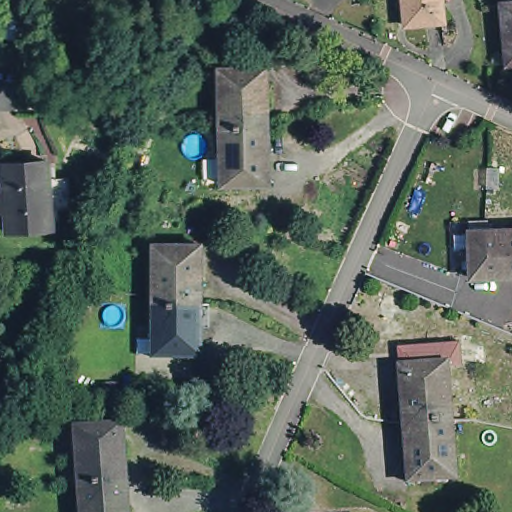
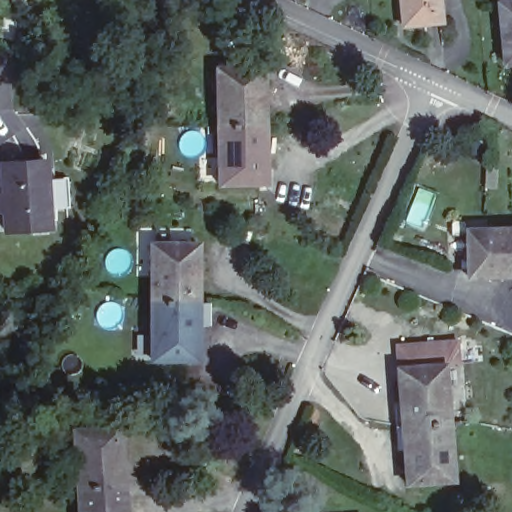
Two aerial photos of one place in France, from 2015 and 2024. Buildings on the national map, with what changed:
unchanged [(402,20),(400,0),(440,0),(443,23),(423,25),(422,19),(402,20)]
unchanged [(501,5),(500,0),(512,0),(512,65),(506,65),(501,5)]
unchanged [(223,184),(221,69),(268,67),(270,183),(223,184)]
unchanged [(52,229),(9,233),(5,166),(47,163),(52,229)]
unchanged [(512,234),(512,281),(474,282),(472,235),(512,234)]
unchanged [(202,244),(203,359),(157,359),(156,244),(202,244)]
unchanged [(404,374),(451,371),(460,486),(413,489),(404,374)]
unchanged [(73,434),(119,431),(125,512),(79,512),(73,434)]

